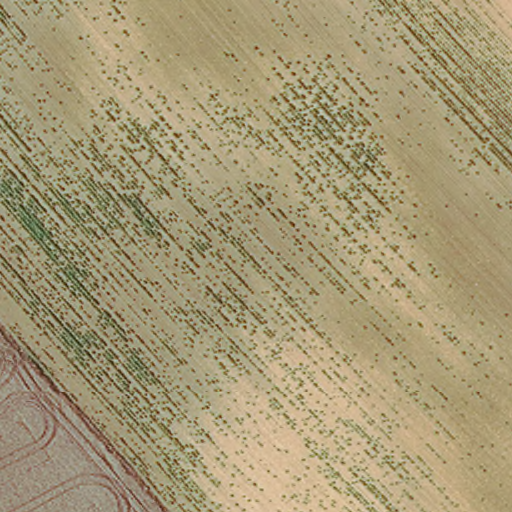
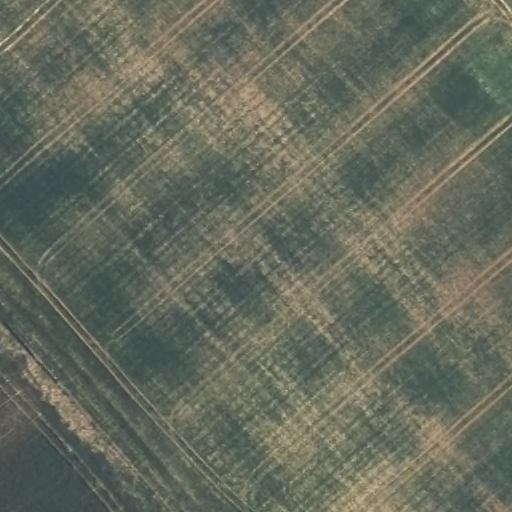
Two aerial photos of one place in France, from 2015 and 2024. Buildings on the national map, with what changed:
[]

